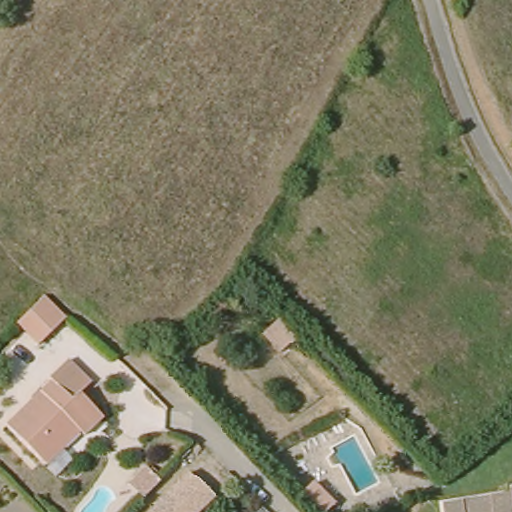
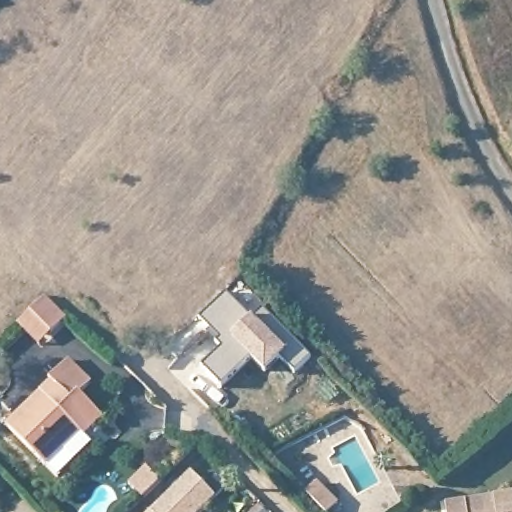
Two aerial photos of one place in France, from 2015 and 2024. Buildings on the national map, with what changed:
new [(250,319),(261,308),(310,358),(294,374),(279,359),(264,373),(251,359),(221,389),(200,368),(219,349),(214,344),(206,335),(209,331),(197,319),(224,293),(250,319)]
unchanged [(23,330),(18,325),(44,299),(66,320),(51,335),(40,347),(23,330)]
unchanged [(12,427),(56,383),(56,381),(74,364),(95,385),(85,394),(109,419),(90,437),(87,433),(51,466),(12,427)]
unchanged [(151,512),(192,473),(215,497),(200,512),(151,512)]
unchanged [(512,485),(512,512),(444,512),(443,501),(511,491),(510,486),(512,485)]

